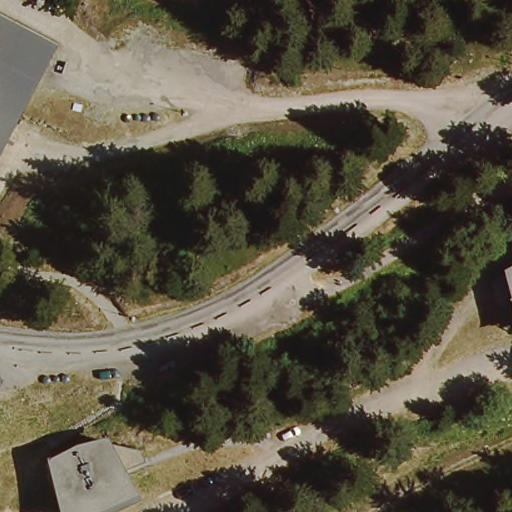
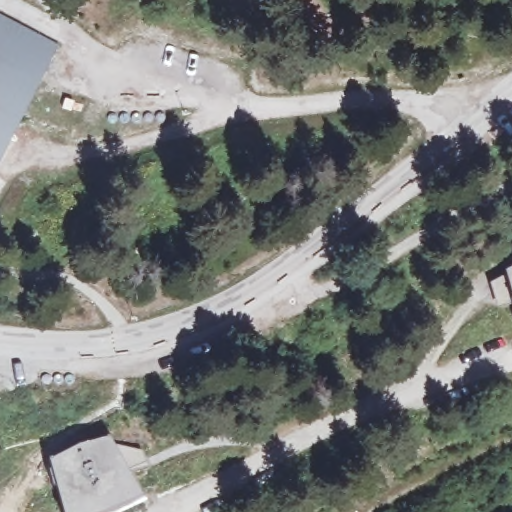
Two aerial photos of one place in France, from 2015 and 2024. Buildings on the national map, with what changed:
unchanged [(56,46),(0,152),(0,17),(56,46)]
unchanged [(503,293),(512,289),(512,313),(508,314),(503,293)]
unchanged [(90,497),(59,508),(45,455),(70,443),(96,436),(131,446),(135,456),(117,463),(115,458),(109,460),(121,484),(90,497)]

